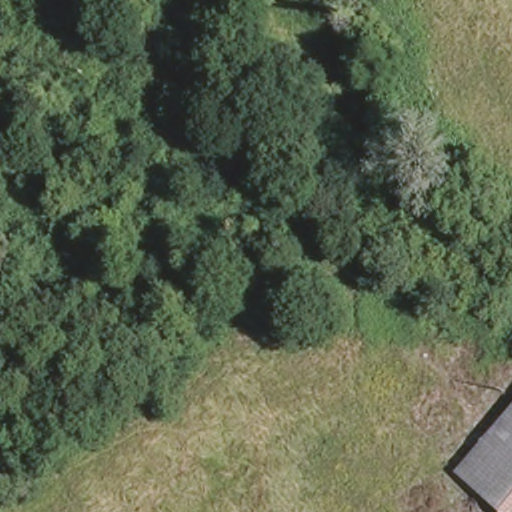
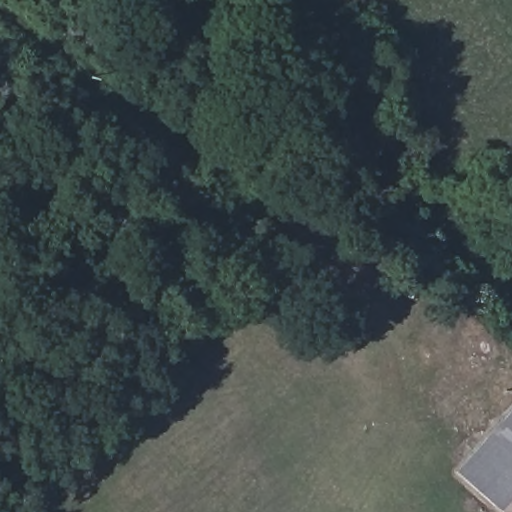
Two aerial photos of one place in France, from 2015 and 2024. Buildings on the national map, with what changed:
unchanged [(512,410),(512,512),(499,512),(455,475),(512,410)]

